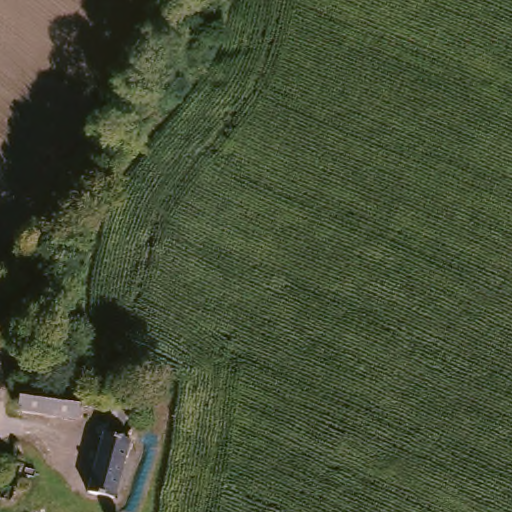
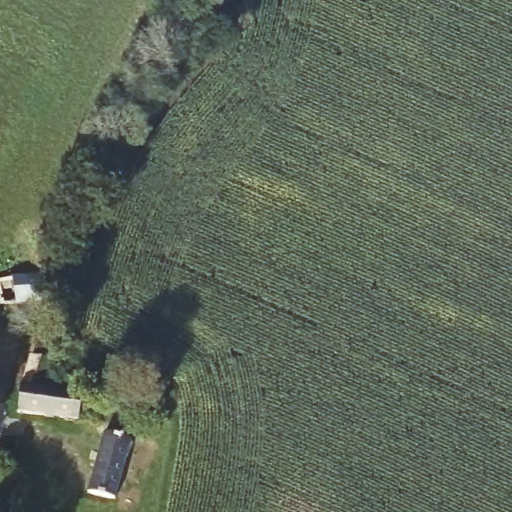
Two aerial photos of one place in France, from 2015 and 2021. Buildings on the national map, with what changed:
unchanged [(25,363),(45,363),(44,394),(77,394),(77,421),(18,421),(19,395),(24,395),(25,363)]
unchanged [(130,442),(114,502),(87,494),(105,436),(130,442)]

